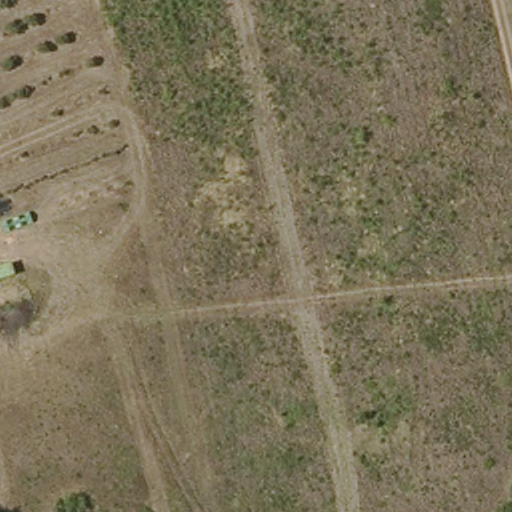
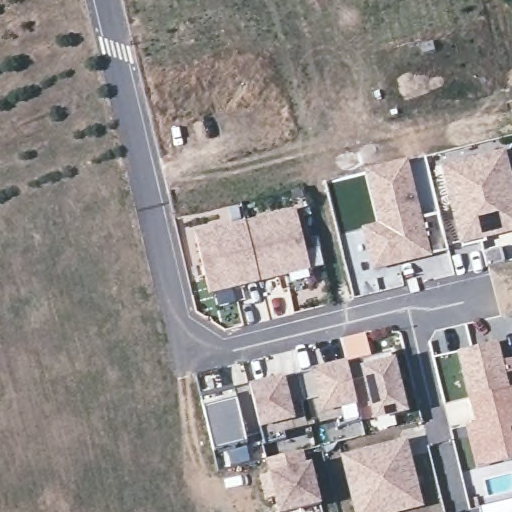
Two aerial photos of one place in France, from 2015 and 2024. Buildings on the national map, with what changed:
new [(512,177),(512,231),(485,237),(485,241),(460,246),(442,164),(505,150),(512,177)]
new [(447,262),(370,279),(360,233),(377,230),(365,174),(425,160),(447,262)]
new [(312,270),(261,282),(246,224),(297,211),(312,270)]
new [(261,282),(210,295),(195,236),(246,224),(261,282)]
new [(465,425),(475,423),(457,352),(498,342),(504,360),(512,358),(512,372),(507,373),(510,387),(512,387),(512,457),(475,466),(465,425)]
new [(361,361),(359,353),(389,345),(400,394),(371,401),(368,390),(354,395),(347,365),(361,361)]
new [(347,365),(354,395),(357,405),(322,414),(319,400),(304,403),(297,378),(347,365)]
new [(297,378),(304,403),(289,406),(292,421),(258,430),(248,390),(297,378)]
new [(248,390),(258,430),(260,437),(245,441),(246,447),(212,455),(199,402),(248,390)]
new [(424,505),(394,512),(354,512),(340,454),(407,438),(424,505)]
new [(310,462),(321,503),(289,512),(279,512),(274,496),(265,500),(259,475),(269,472),(265,460),(304,451),(305,463),(310,462)]
new [(495,512),(494,507),(512,502),(512,512),(495,512)]

